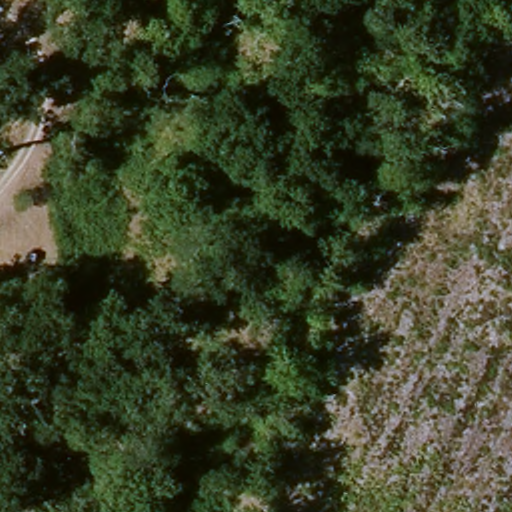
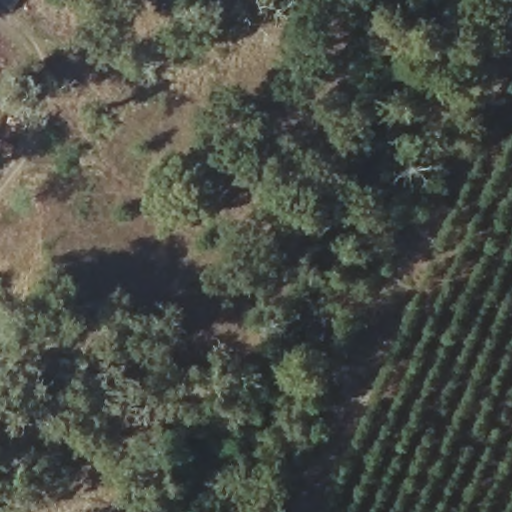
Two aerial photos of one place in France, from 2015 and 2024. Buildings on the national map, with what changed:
[]

